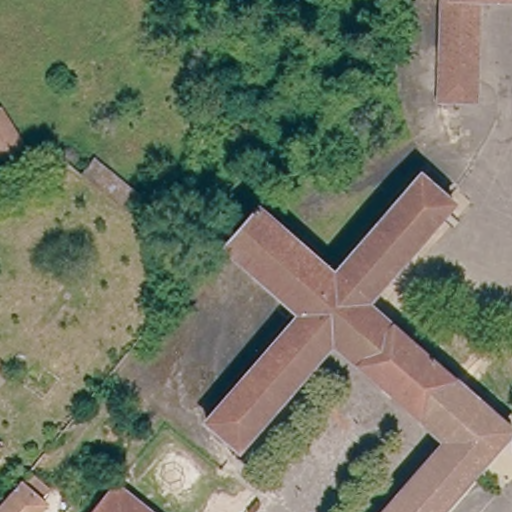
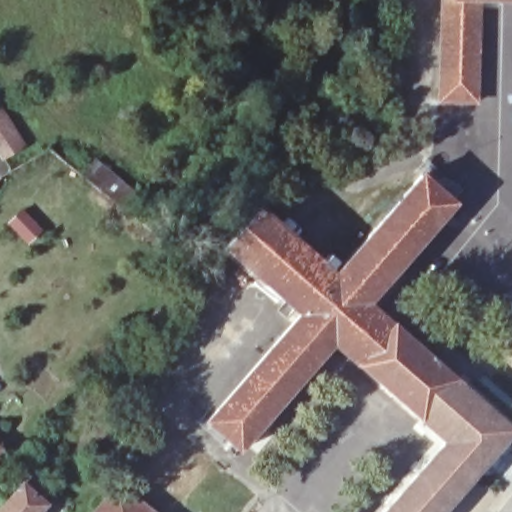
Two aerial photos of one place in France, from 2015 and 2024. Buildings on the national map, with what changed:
unchanged [(477,82),(476,101),(440,100),(440,81),(442,0),(478,0),(477,82)]
unchanged [(0,153),(0,111),(19,142),(0,153)]
unchanged [(440,512),(384,512),(445,442),(332,342),(240,450),(207,422),(300,315),(225,249),(258,208),(334,275),(421,176),(452,204),(367,304),(512,430),(440,512)]
unchanged [(44,492),(36,501),(42,506),(37,512),(0,512),(0,507),(25,476),(44,492)]
unchanged [(148,512),(96,512),(116,487),(148,512)]

